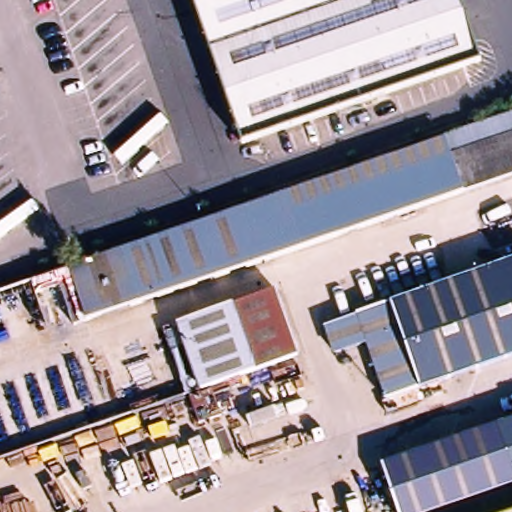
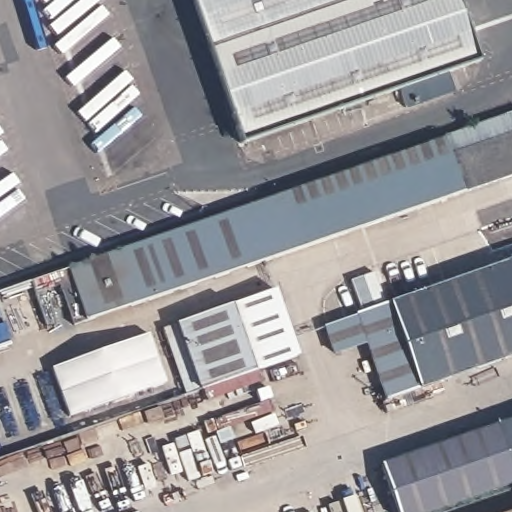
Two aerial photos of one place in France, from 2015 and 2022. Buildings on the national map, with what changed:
unchanged [(479,56),(240,143),(192,0),(459,0),(479,56)]
unchanged [(462,193),(87,322),(72,326),(59,289),(35,297),(30,283),(353,170),(512,115),(512,177),(462,193)]
unchanged [(386,399),(357,313),(512,259),(512,357),(386,399)]
unchanged [(282,288),(304,354),(206,387),(183,322),(282,288)]
unchanged [(206,387),(187,394),(165,330),(183,322),(206,387)]
new [(166,381),(69,416),(51,367),(148,331),(166,381)]
unchanged [(425,512),(404,512),(398,496),(415,489),(405,457),(512,419),(512,482),(425,512)]

